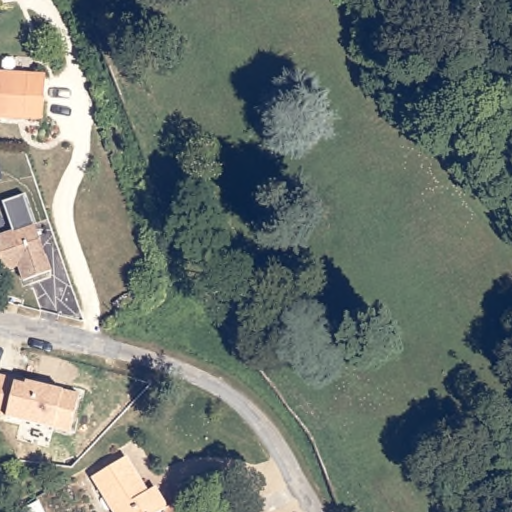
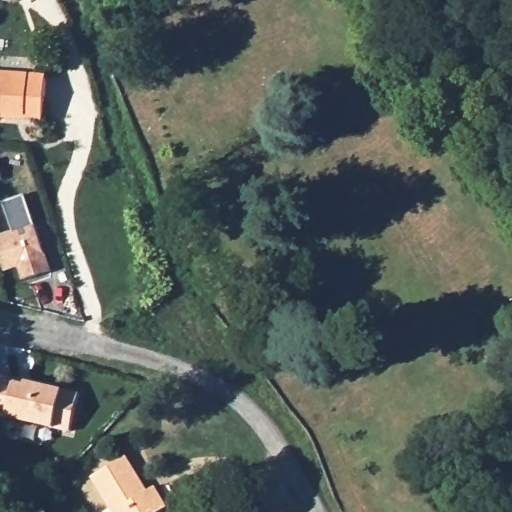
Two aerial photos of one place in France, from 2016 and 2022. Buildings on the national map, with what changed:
unchanged [(42,117),(23,116),(20,112),(2,111),(0,115),(0,69),(47,74),(42,117)]
unchanged [(23,280),(17,267),(2,271),(0,266),(0,235),(12,232),(5,202),(26,195),(50,272),(23,280)]
unchanged [(72,432),(53,431),(6,419),(0,416),(0,374),(80,391),(72,432)]
unchanged [(150,487),(157,483),(170,505),(158,512),(124,512),(99,471),(130,453),(150,487)]
unchanged [(42,497),(49,512),(31,512),(27,504),(42,497)]

